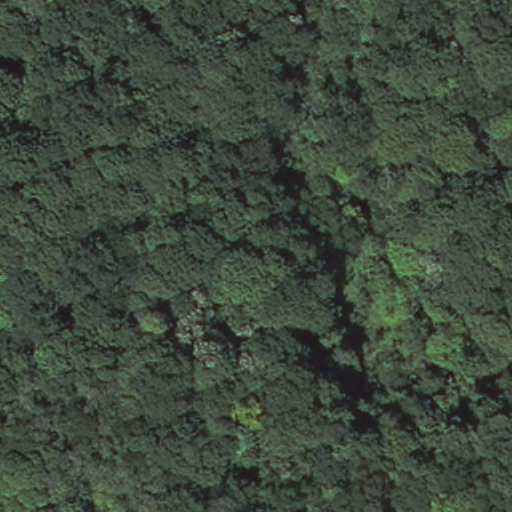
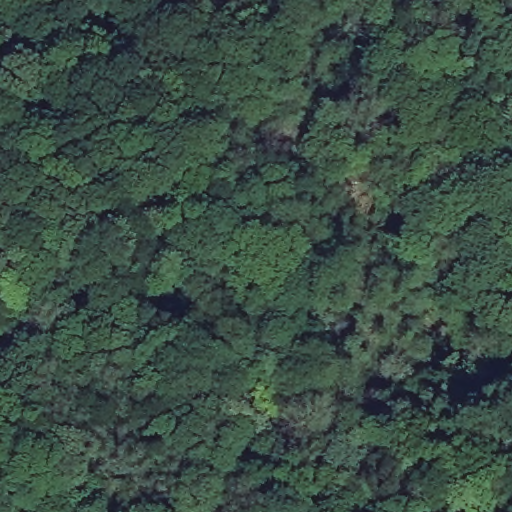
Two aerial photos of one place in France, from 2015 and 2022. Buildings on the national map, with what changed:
unchanged [(434,391),(387,413),(246,113),(294,91),(434,391)]

